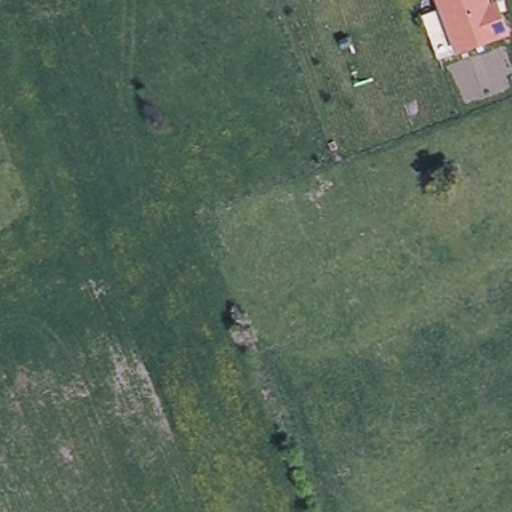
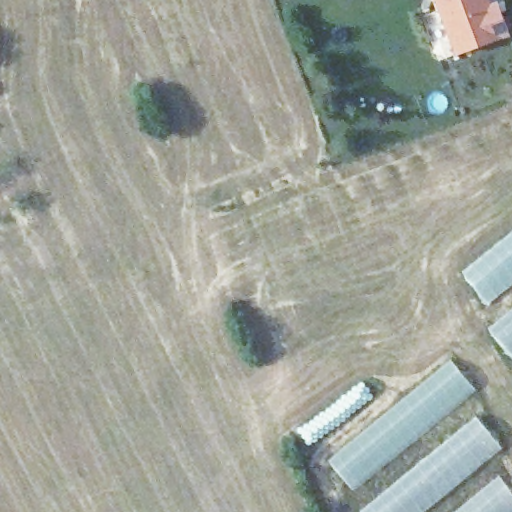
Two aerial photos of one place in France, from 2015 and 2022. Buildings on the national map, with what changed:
unchanged [(488,0),(490,4),(497,2),(500,11),(509,33),(457,52),(439,59),(422,15),(441,8),(438,0),(488,0)]
new [(462,274),(512,233),(512,287),(490,304),(462,274)]
new [(512,312),(512,358),(490,330),(512,312)]
new [(452,361),(478,391),(352,491),(329,462),(452,361)]
new [(475,417),(501,450),(425,512),(360,512),(360,511),(475,417)]
new [(512,512),(457,512),(499,477),(512,493),(512,512)]

